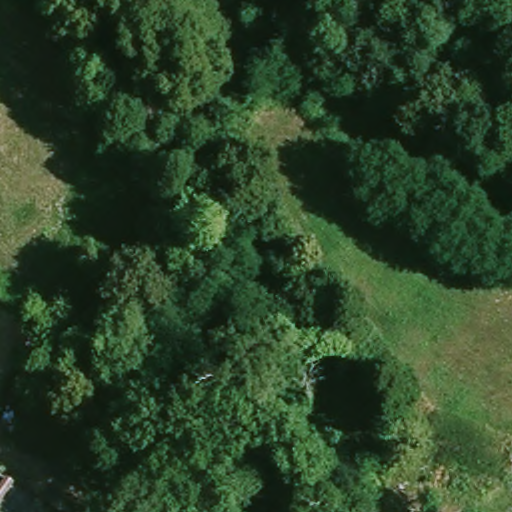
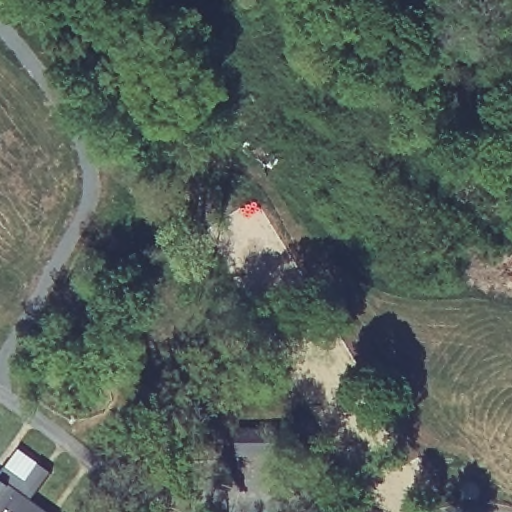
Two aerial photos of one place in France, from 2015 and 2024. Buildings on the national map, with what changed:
unchanged [(1,478),(0,479),(0,477),(1,478)]
unchanged [(21,512),(0,497),(0,479),(1,478),(49,512),(21,512)]
unchanged [(21,512),(0,512),(0,497),(21,512)]

